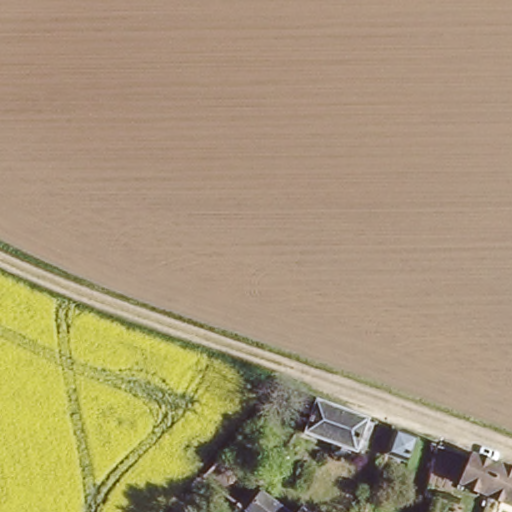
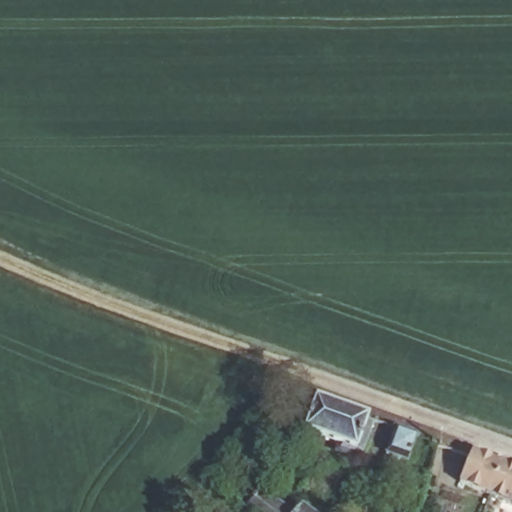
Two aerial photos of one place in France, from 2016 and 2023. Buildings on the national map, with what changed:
unchanged [(320,399),(370,416),(359,448),(307,431),(320,399)]
unchanged [(398,426),(420,433),(411,459),(388,453),(398,426)]
unchanged [(475,452),(502,464),(490,497),(462,485),(475,452)]
unchanged [(512,468),(512,507),(490,497),(502,464),(512,468)]
unchanged [(252,475),(295,507),(304,498),(323,512),(257,512),(245,503),(234,494),(252,475)]

